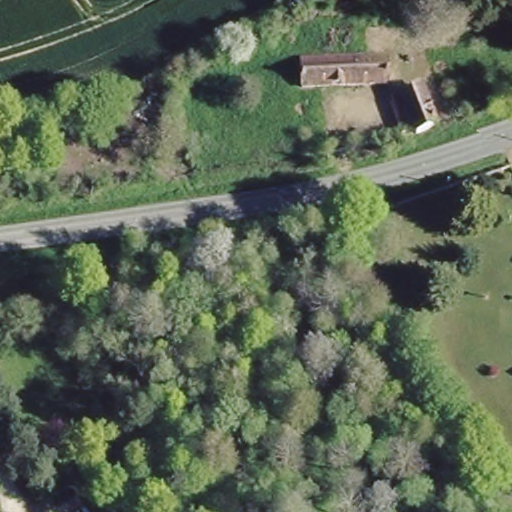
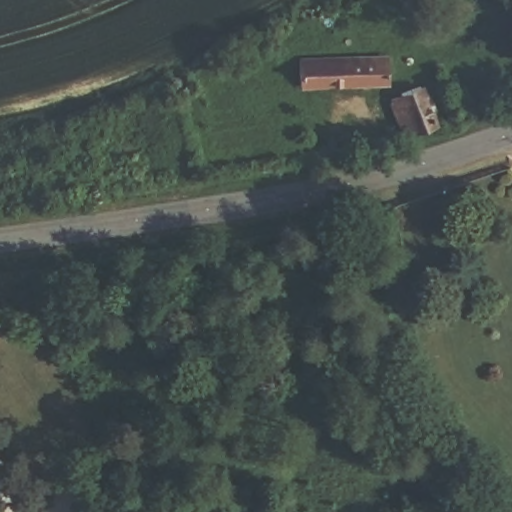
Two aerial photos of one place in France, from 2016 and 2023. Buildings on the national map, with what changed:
unchanged [(296,94),(298,55),(387,61),(385,100),(296,94)]
unchanged [(401,96),(422,89),(431,115),(398,126),(392,109),(404,105),(401,96)]

